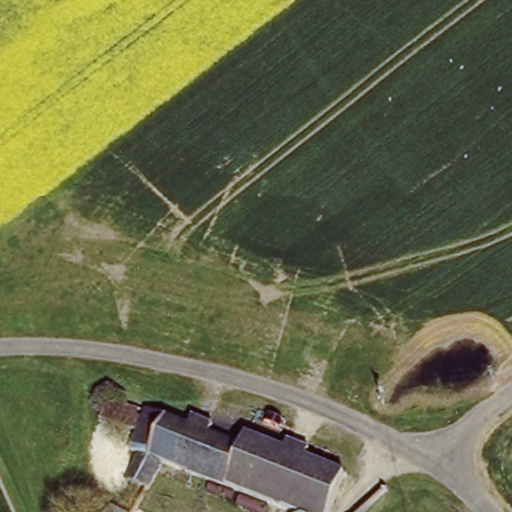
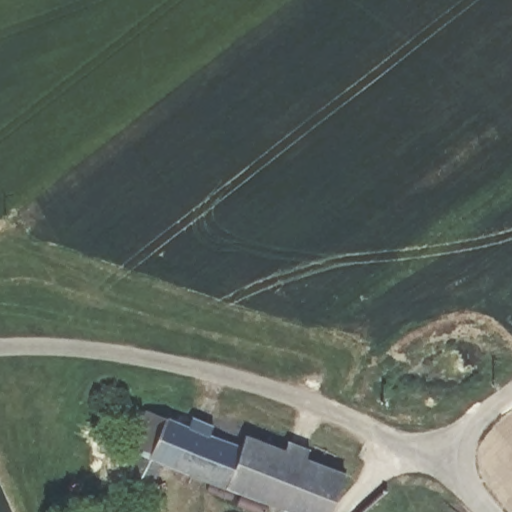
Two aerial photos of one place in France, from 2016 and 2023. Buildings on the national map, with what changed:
unchanged [(164,419),(238,444),(245,433),(342,470),(330,512),(282,512),(150,461),(164,419)]

